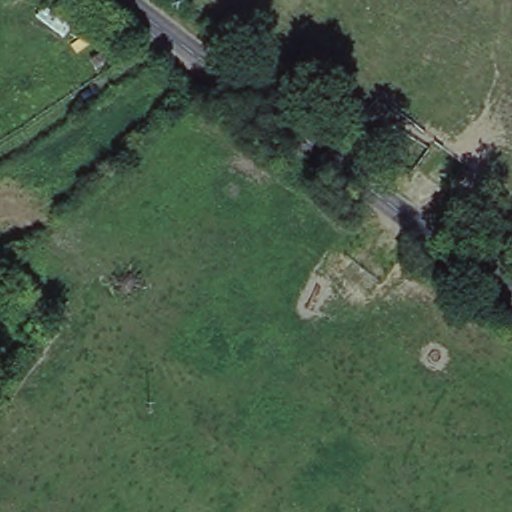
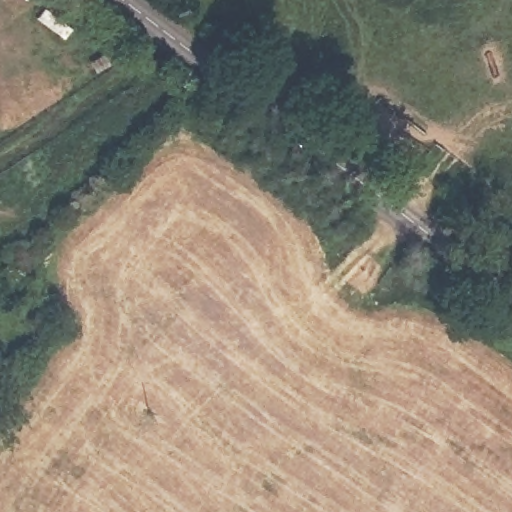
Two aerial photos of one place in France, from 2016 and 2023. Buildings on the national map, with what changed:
[]

